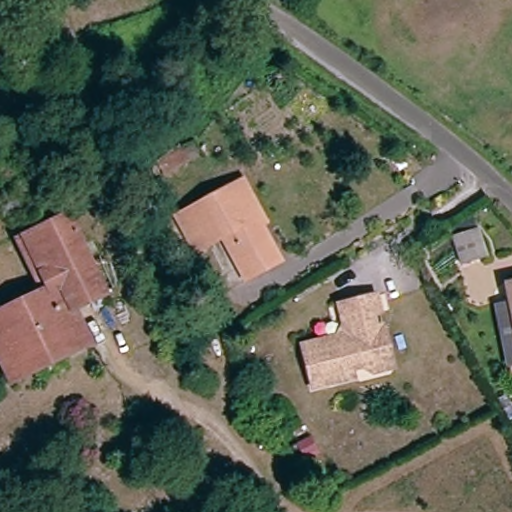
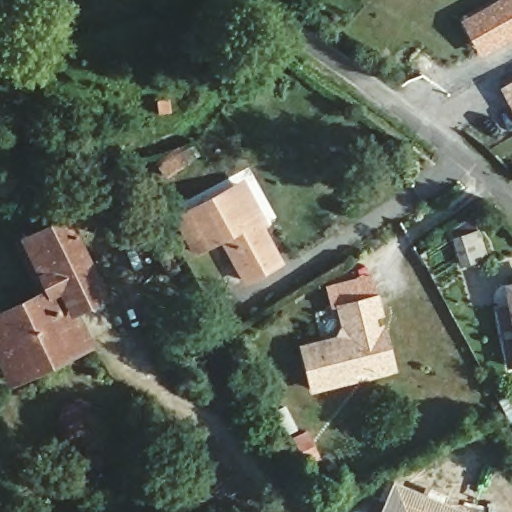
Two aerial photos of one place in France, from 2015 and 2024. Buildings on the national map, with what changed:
new [(495,0),(512,0),(512,39),(482,57),(462,19),(495,0)]
new [(512,80),(512,109),(500,87),(512,80)]
unchanged [(249,275),(227,232),(200,246),(181,210),(209,195),(250,174),(272,217),(266,220),(285,257),(249,275)]
unchanged [(104,298),(74,313),(91,347),(11,386),(0,363),(0,316),(37,298),(12,246),(23,241),(66,220),(104,298)]
unchanged [(461,263),(453,238),(451,229),(473,222),(476,231),(483,256),(461,263)]
unchanged [(512,289),(512,321),(509,306),(506,291),(512,289)]
unchanged [(320,385),(310,342),(346,334),(348,318),(344,302),(383,293),(387,310),(380,311),(382,324),(391,322),(397,346),(401,367),(381,371),(362,376),(320,385)]
unchanged [(512,321),(512,371),(506,373),(492,309),(507,307),(509,306),(512,321)]
new [(472,512),(379,512),(393,478),(472,512)]

